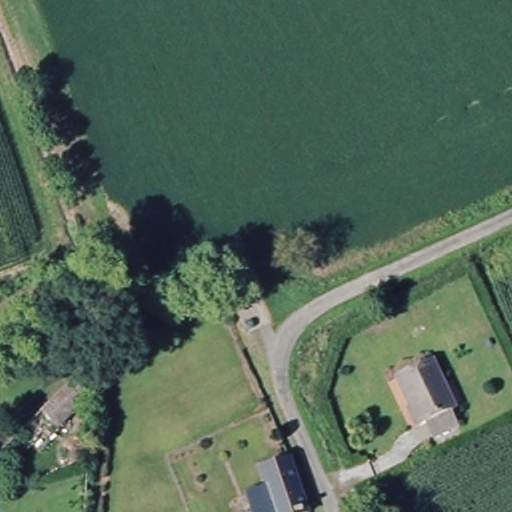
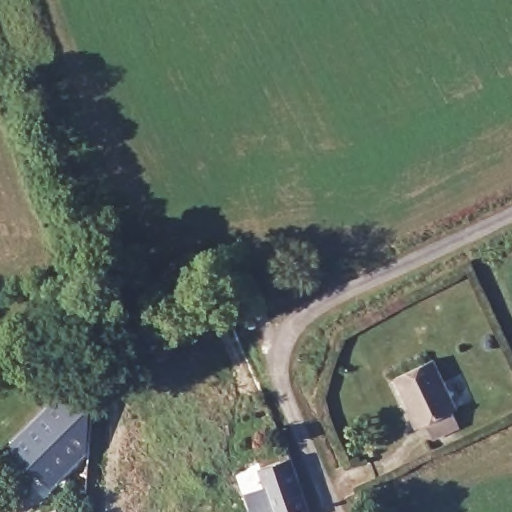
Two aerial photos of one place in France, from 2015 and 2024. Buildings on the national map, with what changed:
unchanged [(40,412),(96,359),(95,397),(61,427),(40,412)]
unchanged [(438,440),(432,426),(427,428),(419,408),(415,410),(401,382),(437,364),(461,413),(456,416),(462,427),(438,440)]
new [(87,454),(52,488),(7,446),(40,412),(61,427),(95,397),(87,454)]
unchanged [(313,512),(257,512),(255,506),(275,500),(263,468),(286,461),(283,456),(292,455),(313,512)]

